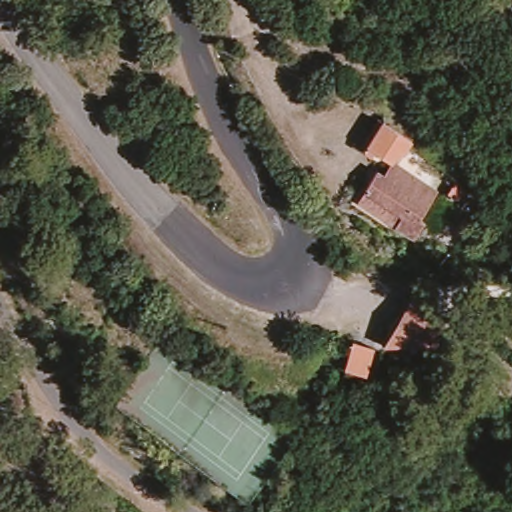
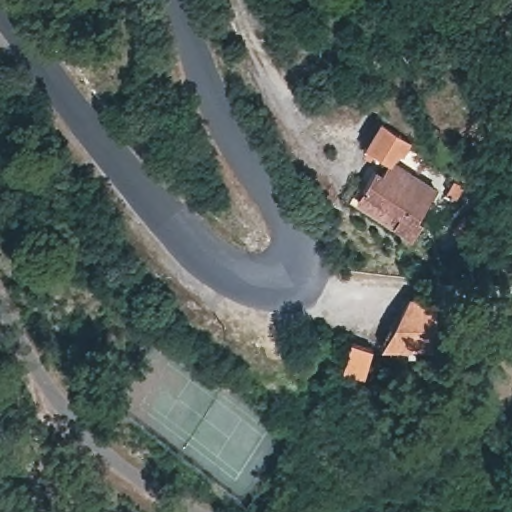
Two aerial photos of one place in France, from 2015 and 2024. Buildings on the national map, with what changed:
unchanged [(377,148),(370,154),(360,144),(380,118),(414,142),(407,154),(402,151),(392,159),(377,148)]
unchanged [(362,180),(373,164),(385,170),(392,159),(431,183),(414,210),(420,215),(410,229),(390,216),(354,191),(362,180)]
unchanged [(437,304),(433,350),(378,345),(379,339),(403,300),(412,301),(437,304)]
unchanged [(363,372),(339,371),(340,344),(363,345),(363,372)]

